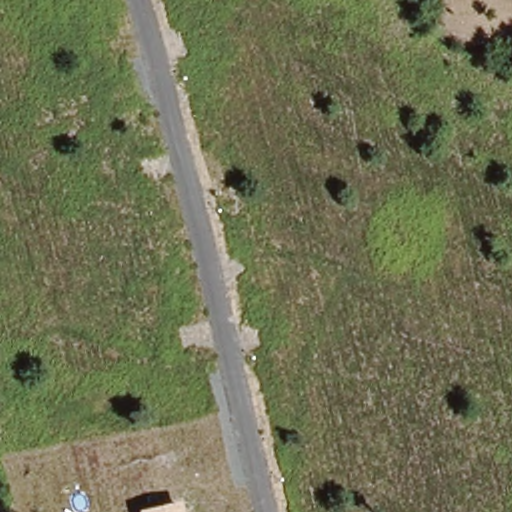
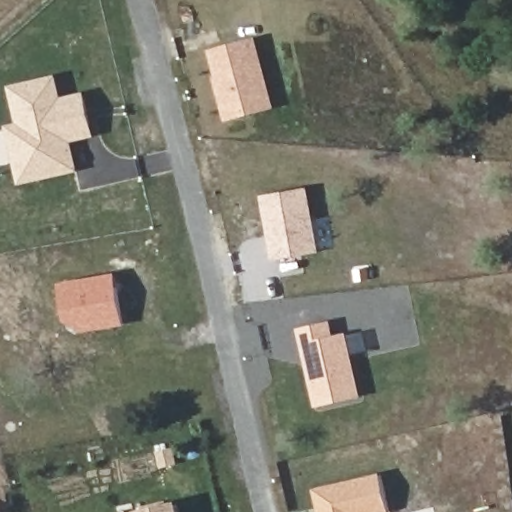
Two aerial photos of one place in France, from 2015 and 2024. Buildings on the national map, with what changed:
new [(277,109),(227,123),(208,51),(257,38),(277,109)]
new [(18,123),(10,86),(57,76),(63,98),(85,92),(96,138),(74,143),(80,172),(20,186),(6,126),(18,123)]
new [(262,196),(309,188),(320,249),(273,258),(262,196)]
new [(117,274),(124,327),(71,334),(61,283),(117,274)]
new [(336,337),(362,331),(367,352),(353,355),(363,398),(317,409),(298,329),(332,321),(336,337)]
new [(314,489),(380,474),(390,512),(320,512),(314,489)]
unchanged [(181,512),(136,512),(136,511),(178,502),(181,512)]

